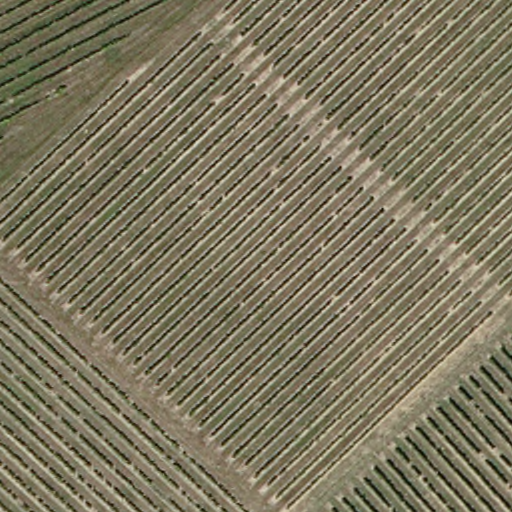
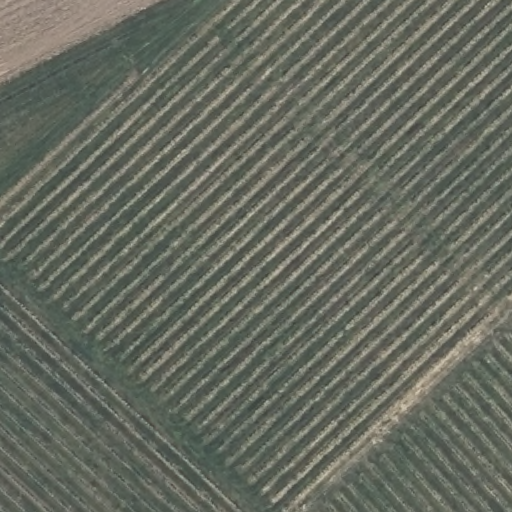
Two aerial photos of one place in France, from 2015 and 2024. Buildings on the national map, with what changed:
[]

